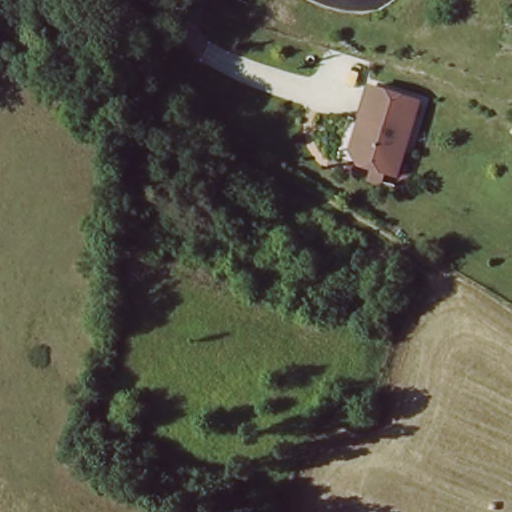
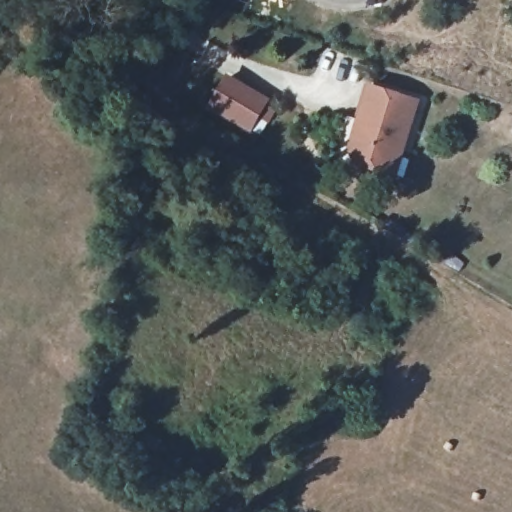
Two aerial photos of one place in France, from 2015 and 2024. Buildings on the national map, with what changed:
new [(269,95),(271,106),(253,133),(211,106),(232,73),(269,95)]
unchanged [(364,174),(370,165),(358,157),(354,141),(363,128),(370,116),(370,115),(390,85),(432,113),(400,162),(390,178),(383,174),(379,171),(373,180),(364,174)]

